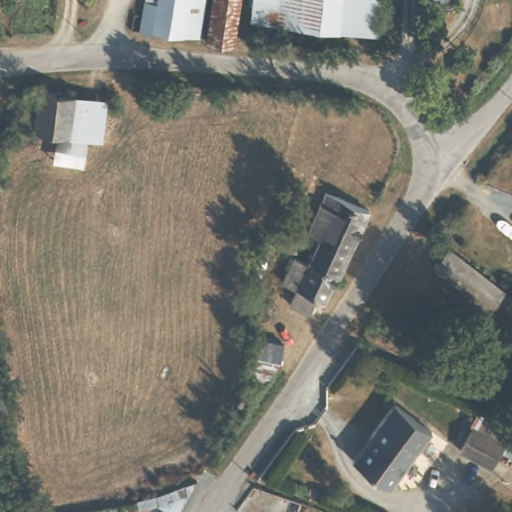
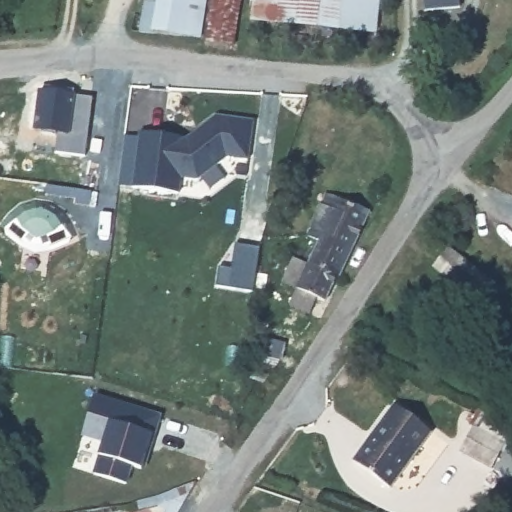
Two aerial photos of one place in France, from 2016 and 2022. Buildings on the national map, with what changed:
unchanged [(149,4),(160,6),(162,0),(208,0),(199,38),(144,26),(149,4)]
unchanged [(217,0),(243,0),(233,48),(209,42),(217,0)]
unchanged [(254,0),(281,0),(279,17),(252,13),(254,0)]
unchanged [(343,0),(338,28),(279,17),(281,0),(343,0)]
unchanged [(379,0),(374,35),(338,28),(343,0),(379,0)]
unchanged [(429,0),(441,0),(429,1),(429,0)]
unchanged [(40,86),(73,94),(65,133),(59,132),(31,126),(40,86)]
unchanged [(109,101),(101,140),(87,137),(65,133),(73,94),(109,101)]
new [(185,137),(215,116),(253,120),(248,159),(227,156),(198,179),(194,179),(194,191),(181,190),(182,177),(179,177),(177,193),(130,186),(138,131),(185,137)]
unchanged [(314,310),(292,300),(299,285),(284,278),(297,254),(312,261),(323,238),(307,230),(329,190),(373,211),(353,253),(343,275),(329,302),(321,298),(314,310)]
unchanged [(503,292),(488,311),(433,267),(448,248),(503,292)]
unchanged [(288,341),(274,375),(250,372),(253,333),(288,341)]
new [(103,440),(83,434),(94,396),(156,415),(139,468),(129,465),(125,482),(93,473),(103,440)]
unchanged [(356,461),(372,439),(368,435),(389,403),(429,430),(390,485),(356,461)]
unchanged [(479,408),(512,424),(512,443),(507,442),(493,470),(457,451),(479,408)]
unchanged [(166,511),(156,506),(168,485),(192,497),(183,512),(165,512),(166,511)]

